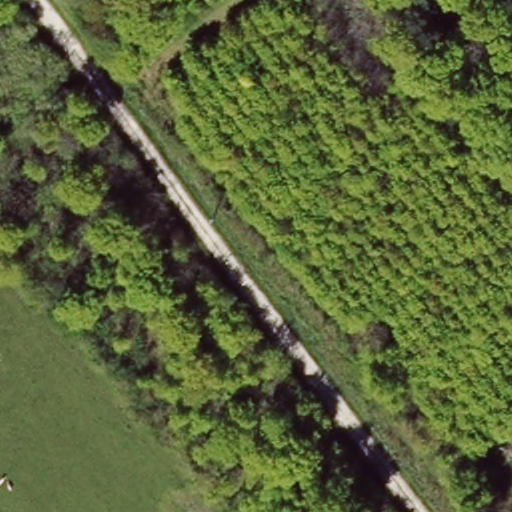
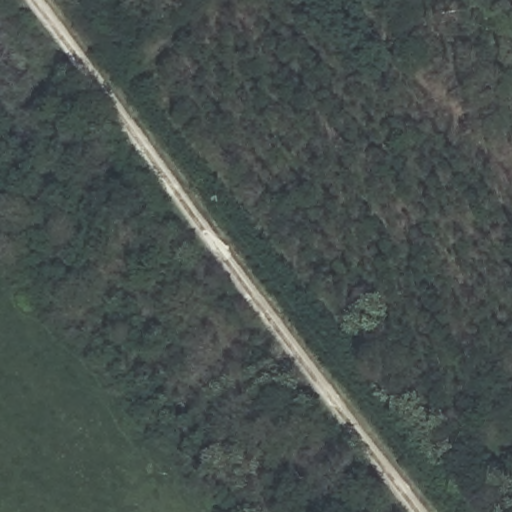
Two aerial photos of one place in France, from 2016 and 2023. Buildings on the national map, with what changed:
[]

